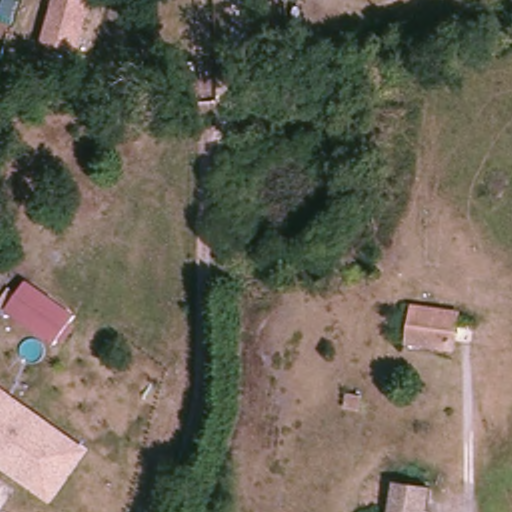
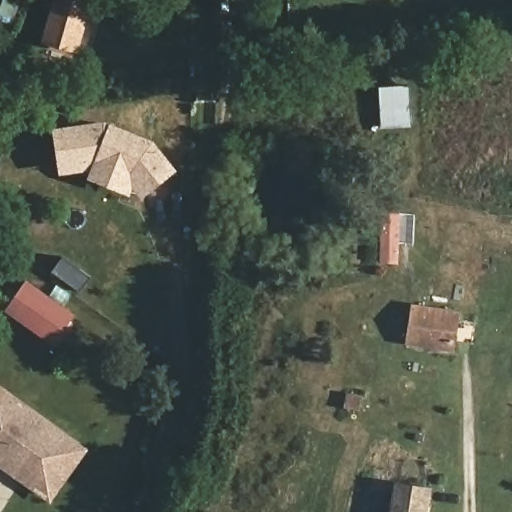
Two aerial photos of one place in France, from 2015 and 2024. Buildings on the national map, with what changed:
unchanged [(86,0),(74,49),(42,41),(53,0),(86,0)]
new [(411,87),(411,129),(386,127),(383,88),(411,87)]
new [(104,121),(152,140),(178,172),(148,197),(133,187),(129,196),(84,180),(87,175),(60,175),(52,128),(104,121)]
unchanged [(76,316),(57,345),(6,315),(27,285),(76,316)]
unchanged [(421,317),(452,320),(450,340),(417,338),(421,317)]
unchanged [(52,503),(0,466),(0,387),(88,450),(52,503)]
unchanged [(428,512),(397,512),(399,490),(431,492),(428,512)]

